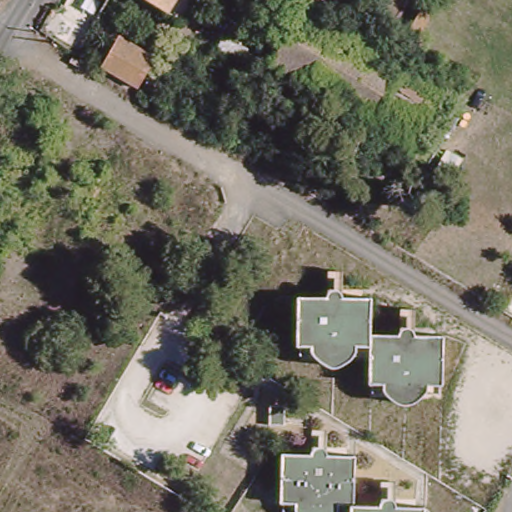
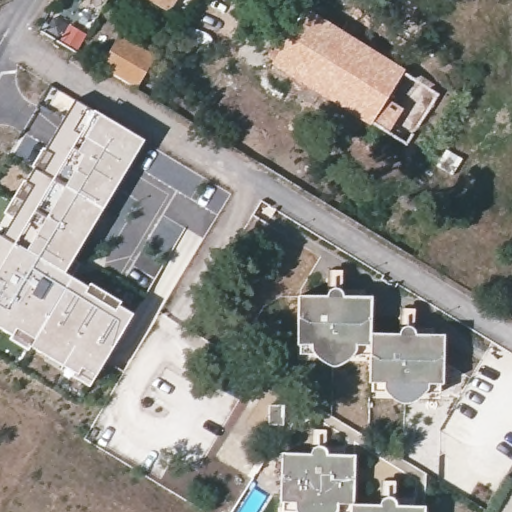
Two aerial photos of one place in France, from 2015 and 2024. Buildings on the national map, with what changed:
unchanged [(189,14),(164,0),(197,0),(189,14)]
new [(390,134),(372,123),(271,63),(305,7),(405,70),(390,97),(405,107),(390,134)]
demolished [(303,83),(270,62),(301,10),(334,32),(303,83)]
demolished [(433,94),(403,146),(303,83),(334,32),(433,94)]
unchanged [(155,53),(139,83),(106,63),(124,34),(155,53)]
new [(142,140),(64,273),(88,287),(84,293),(115,313),(119,306),(134,314),(96,375),(81,367),(76,375),(0,327),(0,235),(2,236),(14,217),(4,212),(76,99),(98,114),(142,140)]
unchanged [(325,297),(329,291),(333,289),(335,289),(339,292),(340,297),(366,297),(370,336),(395,336),(399,333),(404,330),(409,330),(414,337),(440,335),(440,381),(427,382),(427,391),(420,402),(409,408),(398,405),(389,398),(385,393),(382,386),(369,384),(367,346),(360,347),(356,357),(349,364),(336,367),(331,367),(321,361),(311,352),(307,344),(297,343),(298,297),(325,297)]
unchanged [(381,501),(390,500),(396,506),(422,507),(421,512),(345,512),(345,506),(338,511),(337,512),(292,512),(290,507),(280,504),(281,454),(309,454),(313,449),(323,449),(325,455),(353,455),(353,505),(377,505),(381,501)]

